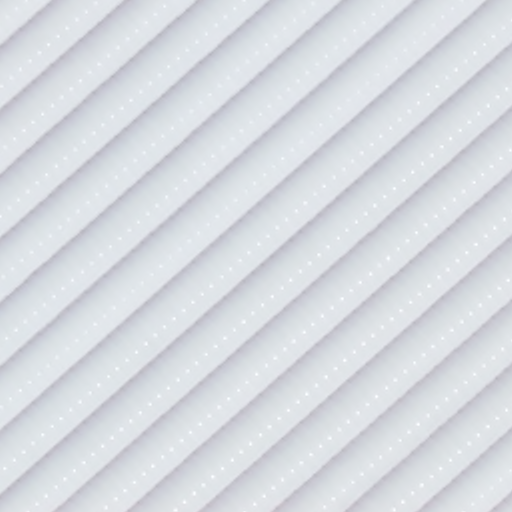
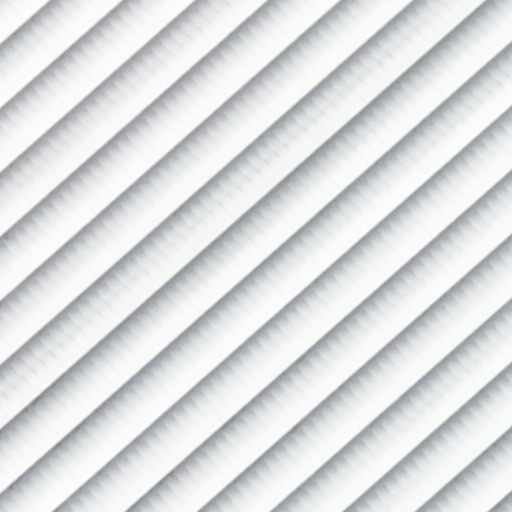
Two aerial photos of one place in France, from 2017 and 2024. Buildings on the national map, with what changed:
unchanged [(0,512),(0,0),(512,0),(512,512),(0,512)]

